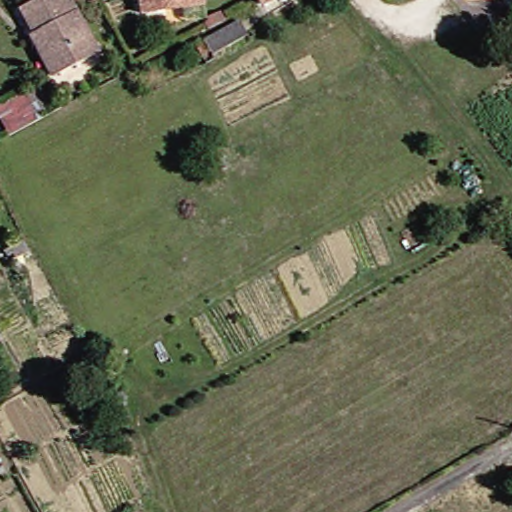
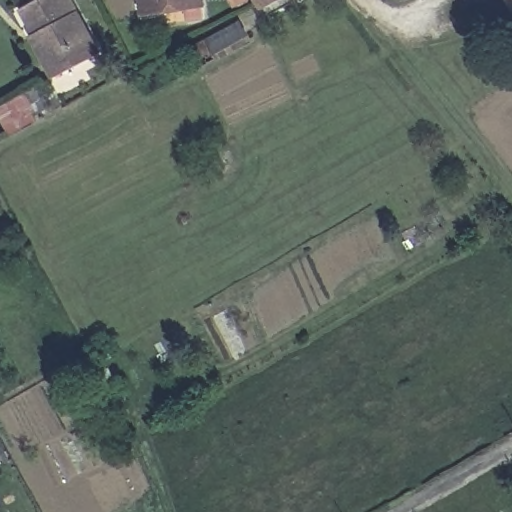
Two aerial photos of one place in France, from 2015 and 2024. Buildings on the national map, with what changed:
unchanged [(58,75),(36,33),(38,32),(26,6),(37,0),(76,0),(102,52),(58,75)]
unchanged [(168,11),(148,15),(146,0),(210,0),(210,4),(168,11)]
unchanged [(261,0),(270,0),(262,4),(261,0)]
unchanged [(205,60),(194,40),(235,19),(245,40),(205,60)]
unchanged [(16,89),(29,81),(42,101),(29,108),(16,89)]

